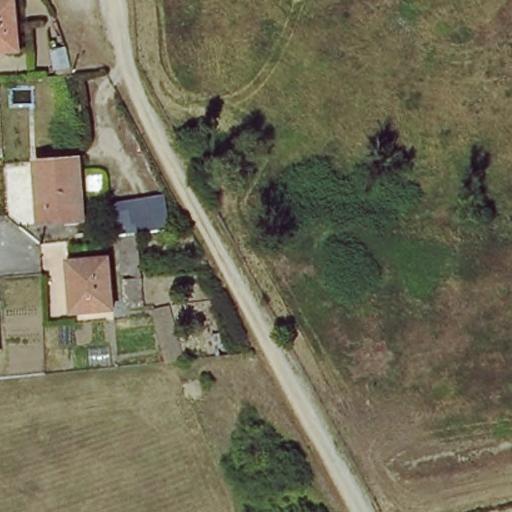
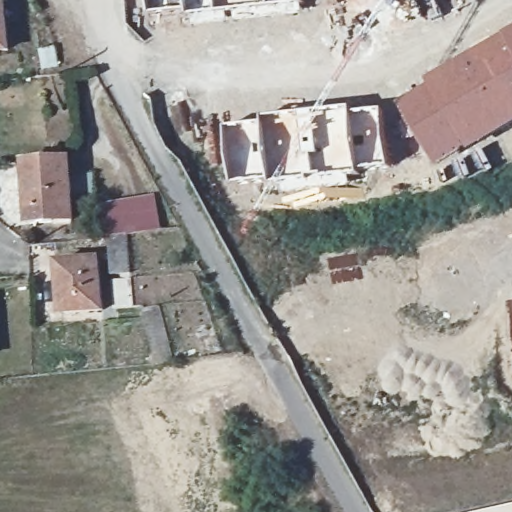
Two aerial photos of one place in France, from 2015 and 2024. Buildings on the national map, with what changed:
unchanged [(17,45),(0,45),(0,0),(16,0),(17,45)]
new [(427,80),(512,31),(512,127),(469,153),(437,167),(400,105),(430,84),(427,80)]
new [(281,194),(279,181),(231,185),(225,126),(262,119),(261,116),(353,106),(353,111),(359,172),(338,175),(340,186),(281,194)]
new [(384,108),(390,166),(359,172),(353,111),(384,108)]
unchanged [(75,153),(81,213),(34,217),(30,156),(75,153)]
unchanged [(123,267),(120,228),(118,198),(145,196),(152,195),(170,194),(173,224),(172,224),(166,225),(140,227),(143,265),(123,267)]
unchanged [(104,261),(107,312),(66,316),(62,264),(104,261)]
unchanged [(123,272),(143,271),(145,298),(125,299),(123,272)]

